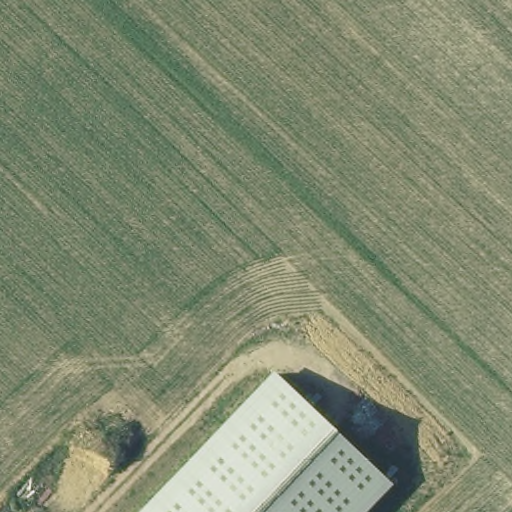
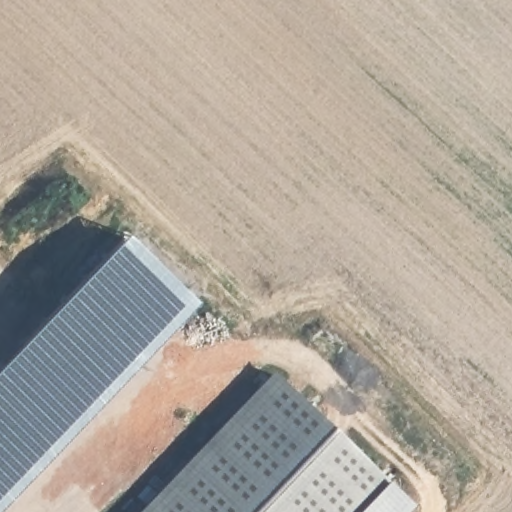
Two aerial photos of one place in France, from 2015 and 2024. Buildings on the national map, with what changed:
new [(6,512),(0,512),(0,364),(125,234),(201,305),(6,512)]
unchanged [(417,510),(415,512),(135,512),(274,371),(417,510)]

